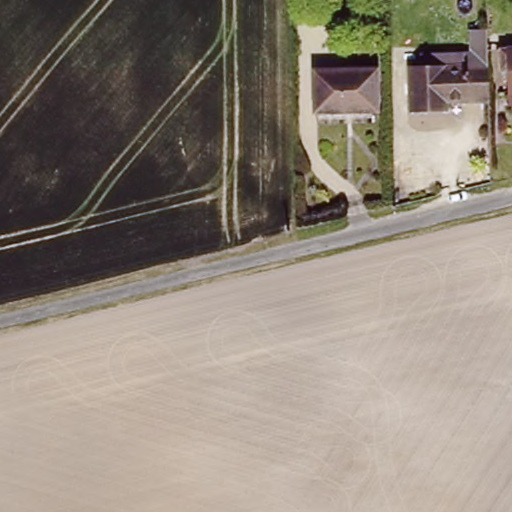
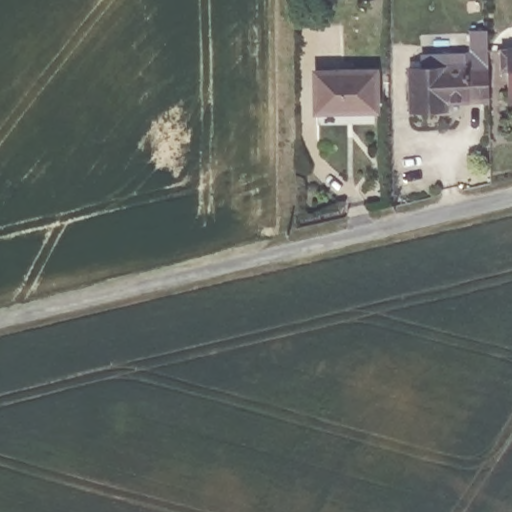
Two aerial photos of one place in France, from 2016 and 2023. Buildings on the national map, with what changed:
unchanged [(422,61),(420,51),(471,49),(471,26),(486,25),(487,48),(488,97),(445,99),(445,106),(410,108),(407,64),(422,61)]
unchanged [(506,63),(501,64),(500,43),(512,42),(512,100),(511,101),(510,84),(505,83),(506,63)]
unchanged [(317,70),(378,68),(380,108),(320,111),(317,70)]

